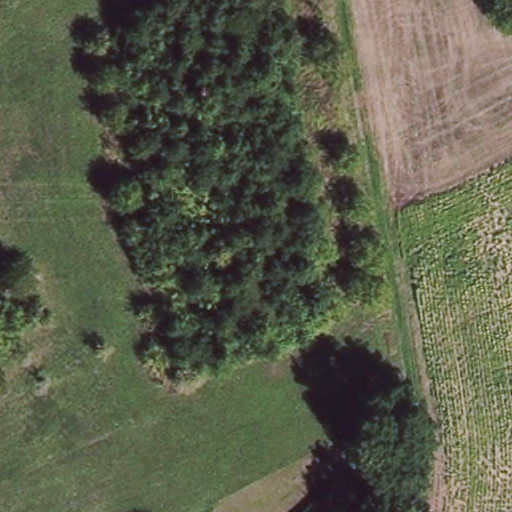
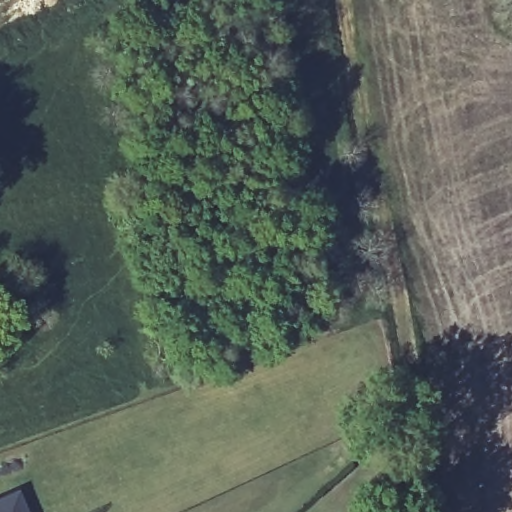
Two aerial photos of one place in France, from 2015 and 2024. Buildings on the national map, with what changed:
unchanged [(377,512),(373,512),(356,504),(368,480),(388,490),(377,512)]
new [(21,489),(31,512),(0,512),(0,499),(7,496),(21,489)]

